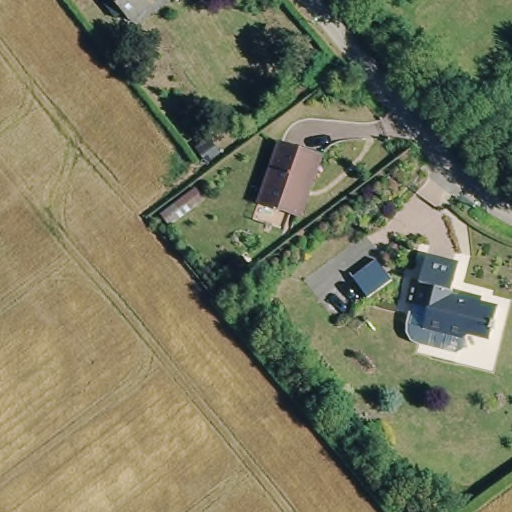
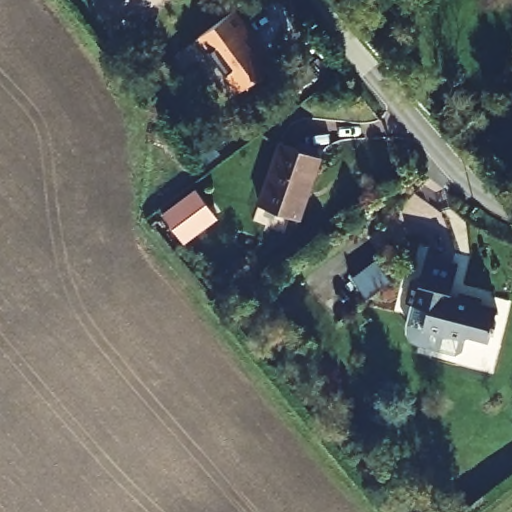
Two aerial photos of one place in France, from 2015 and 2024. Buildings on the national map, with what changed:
unchanged [(130,20),(115,0),(155,0),(130,20)]
new [(277,63),(242,89),(237,83),(232,87),(223,75),(227,72),(210,50),(206,53),(196,39),(236,9),(277,63)]
new [(218,152),(206,161),(195,147),(207,137),(218,152)]
unchanged [(320,155),(300,216),(260,202),(280,142),(320,155)]
demolished [(204,199),(169,226),(160,214),(195,188),(204,199)]
new [(216,217),(181,244),(160,214),(195,188),(216,217)]
unchanged [(455,295),(462,296),(463,293),(486,298),(485,303),(502,306),(498,323),(501,323),(500,330),(496,330),(494,339),(475,333),(468,338),(427,327),(427,325),(422,315),(425,306),(411,302),(416,279),(425,280),(431,256),(463,262),(455,295)]

